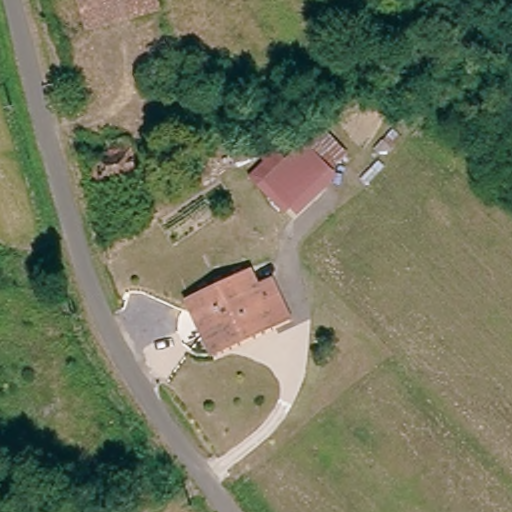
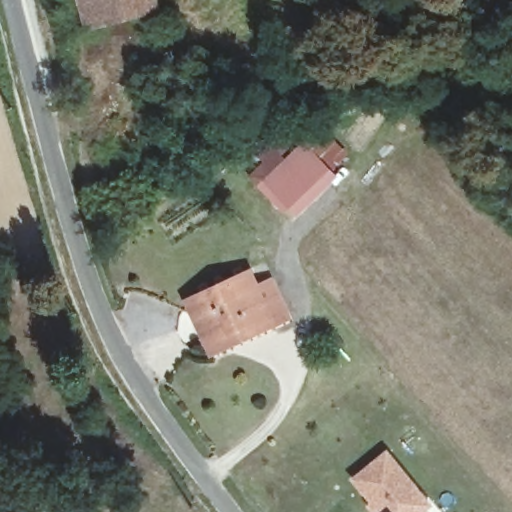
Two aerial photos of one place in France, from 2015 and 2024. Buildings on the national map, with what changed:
unchanged [(159,9),(157,10),(88,30),(80,0),(156,0),(159,9)]
unchanged [(467,20),(443,0),(484,0),(467,20)]
unchanged [(200,89),(218,133),(205,137),(194,141),(177,97),(196,90),(200,89)]
unchanged [(321,130),(345,151),(330,170),(332,176),(295,217),(254,182),(321,130)]
unchanged [(143,172),(107,187),(98,159),(113,153),(109,139),(128,132),(143,172)]
unchanged [(181,305),(189,300),(237,270),(247,287),(262,278),(282,310),(267,320),(220,350),(211,355),(181,305)]
new [(425,512),(371,512),(365,505),(370,502),(350,478),(386,449),(432,506),(425,512)]

